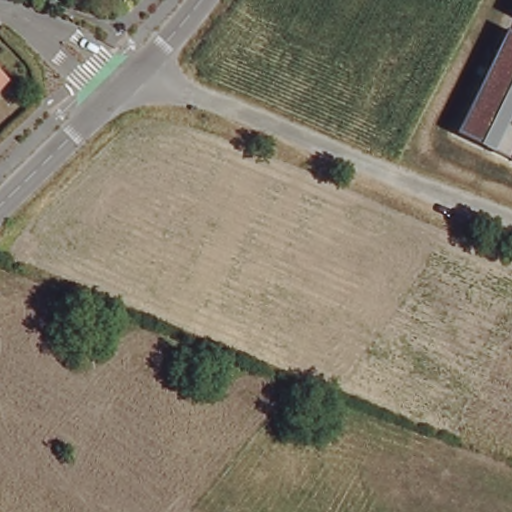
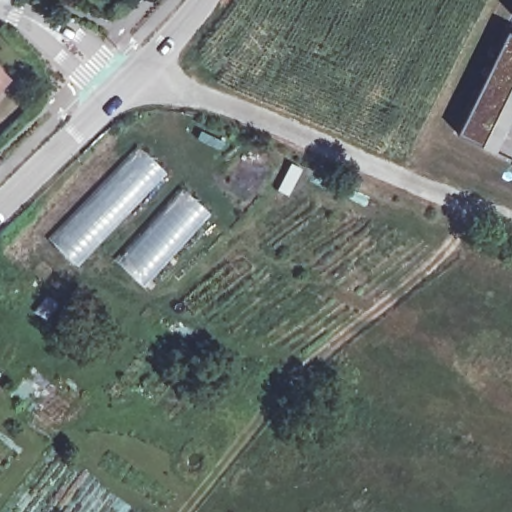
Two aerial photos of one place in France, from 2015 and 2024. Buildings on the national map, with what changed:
unchanged [(456,137),(508,31),(512,32),(512,111),(512,112),(512,163),(493,155),(456,137)]
unchanged [(7,90),(0,97),(0,83),(7,90)]
new [(135,148),(164,172),(75,266),(46,239),(135,148)]
new [(176,189),(206,212),(140,287),(112,261),(176,189)]

